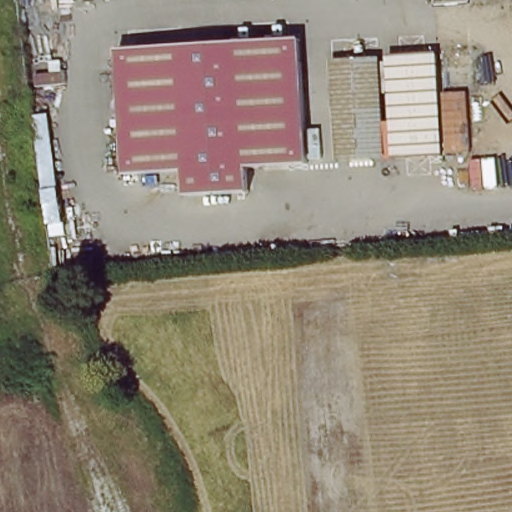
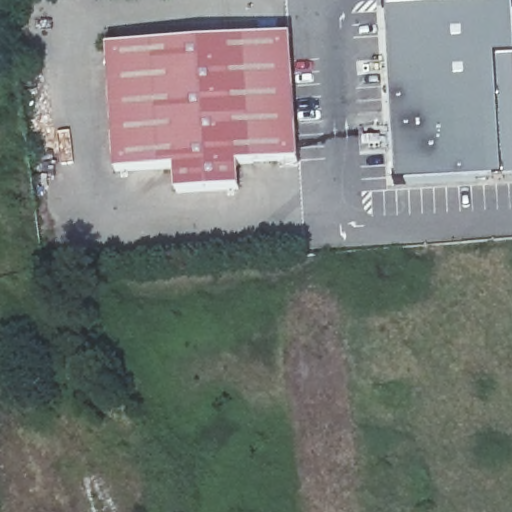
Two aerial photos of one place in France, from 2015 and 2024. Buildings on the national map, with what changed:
new [(385,6),(496,0),(512,0),(512,177),(398,183),(385,6)]
unchanged [(296,36),(299,141),(300,162),(240,164),(241,189),(179,191),(178,166),(118,168),(118,145),(114,42),(296,36)]
demolished [(424,137),(424,157),(379,157),(379,139),(376,56),(421,55),(424,137)]
demolished [(369,139),(369,157),(326,158),(325,140),(323,61),(366,60),(369,139)]

